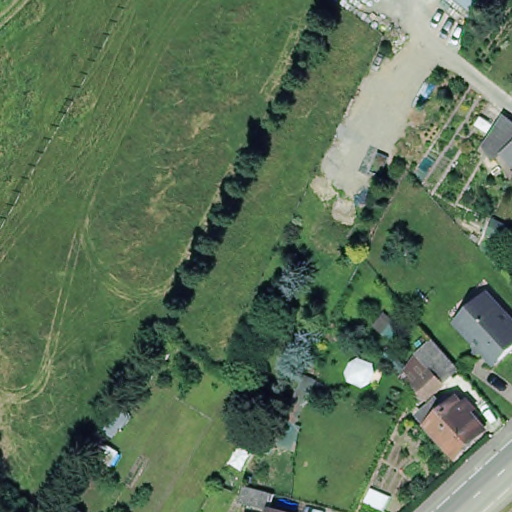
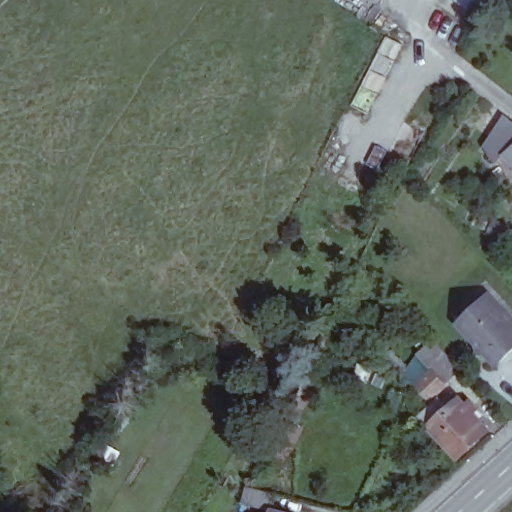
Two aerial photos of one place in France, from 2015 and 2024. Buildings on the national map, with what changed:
unchanged [(459,0),(492,0),(479,17),(459,0)]
unchanged [(510,160),(498,171),(485,147),(507,115),(512,117),(512,163),(510,160)]
unchanged [(465,317),(497,289),(512,306),(512,351),(502,360),(465,317)]
unchanged [(424,391),(427,388),(422,384),(428,372),(435,381),(440,376),(431,365),(425,359),(440,346),(442,345),(467,375),(452,388),(435,403),(424,391)]
unchanged [(492,432),(462,459),(435,430),(427,421),(447,403),(455,411),(465,402),(492,432)]
unchanged [(263,512),(267,495),(271,496),(297,503),(295,512),(264,512),(263,512)]

